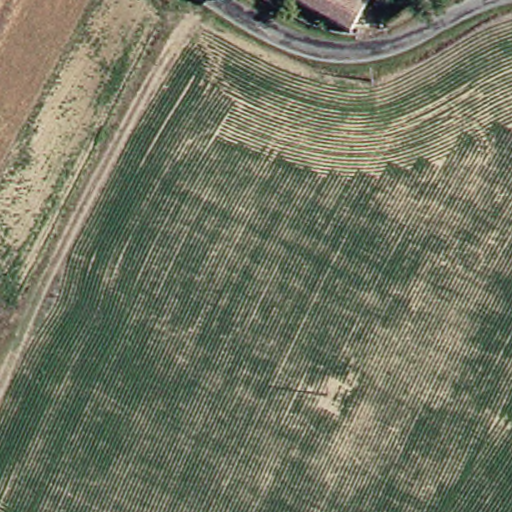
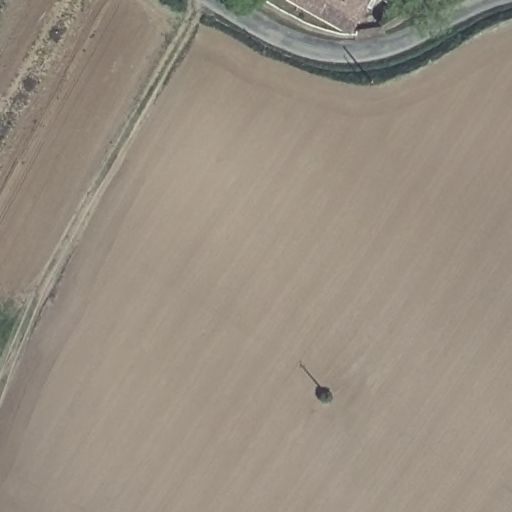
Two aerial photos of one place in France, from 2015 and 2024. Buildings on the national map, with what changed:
unchanged [(300,0),(365,0),(349,27),(300,0)]

